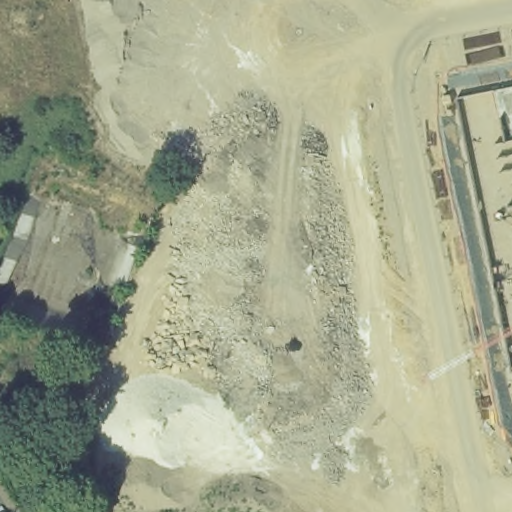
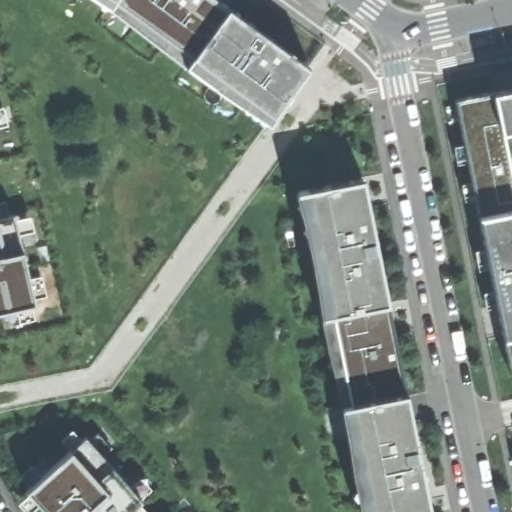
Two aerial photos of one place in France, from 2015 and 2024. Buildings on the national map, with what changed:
new [(268,123),(187,66),(136,26),(98,0),(218,0),(310,66),(268,123)]
unchanged [(455,99),(512,87),(512,130),(503,132),(512,174),(512,375),(511,376),(497,307),(487,309),(484,297),(494,294),(489,269),(478,270),(477,259),(487,256),(475,199),(465,200),(462,189),(472,186),(467,163),(457,164),(455,151),(465,148),(455,99)]
new [(4,107),(8,125),(0,127),(0,108),(4,107)]
new [(363,178),(407,395),(352,407),(357,433),(413,422),(431,512),(363,512),(359,499),(311,252),(297,191),(363,178)]
new [(5,201),(9,215),(15,214),(30,278),(42,275),(47,295),(35,299),(35,303),(0,311),(0,202),(5,201)]
new [(32,465),(42,476),(86,437),(90,441),(98,433),(112,448),(102,456),(142,500),(139,503),(147,512),(46,512),(27,490),(30,486),(21,475),(32,465)]

